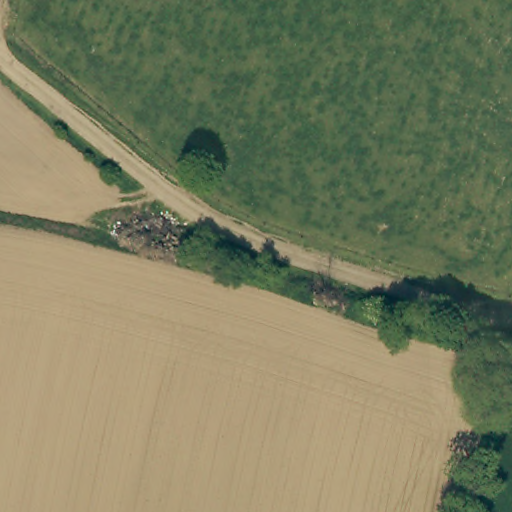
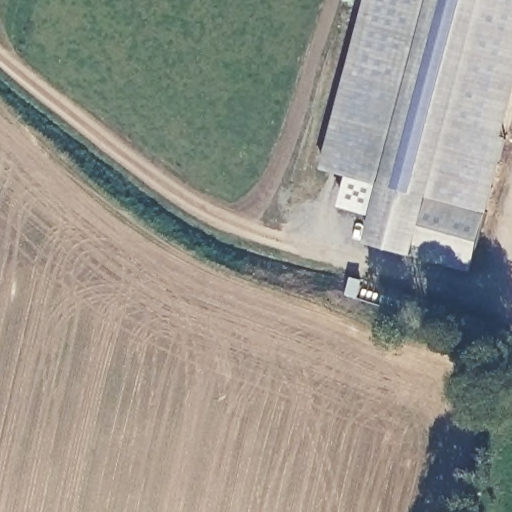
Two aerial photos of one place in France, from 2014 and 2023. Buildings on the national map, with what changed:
new [(510,140),(472,275),(415,258),(366,245),(382,187),(322,172),(369,0),(512,0),(512,107),(503,137),(510,140)]

